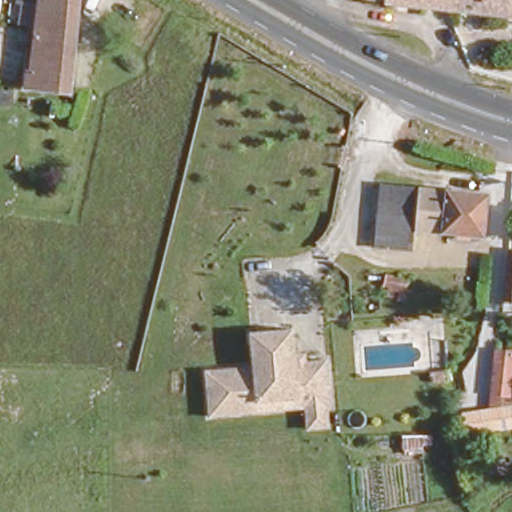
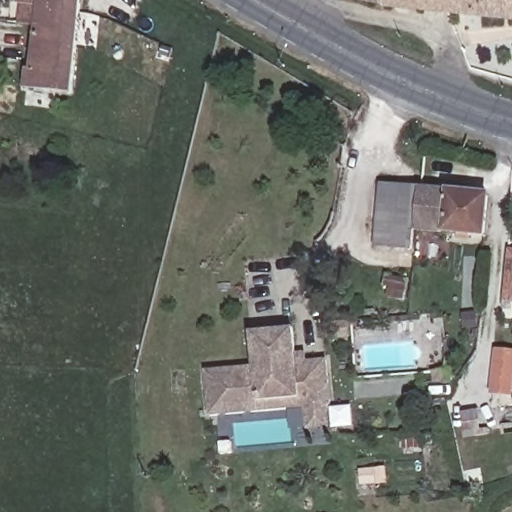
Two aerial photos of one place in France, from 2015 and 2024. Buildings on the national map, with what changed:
unchanged [(30,69),(51,69),(50,36),(19,35),(20,14),(12,14),(12,0),(77,0),(75,87),(32,85),(29,81),(30,69)]
unchanged [(360,0),(512,0),(512,14),(360,0)]
unchanged [(389,183),(477,194),(474,225),(413,219),(410,244),(383,240),(389,183)]
unchanged [(506,301),(509,242),(512,242),(512,301),(506,301)]
unchanged [(328,428),(306,429),(306,427),(305,408),(207,412),(205,369),(254,367),(252,333),(294,331),(295,356),(305,356),(305,365),(326,364),(327,407),(328,422),(328,428)]
unchanged [(473,435),(470,410),(489,407),(493,349),(512,349),(512,429),(473,435)]

